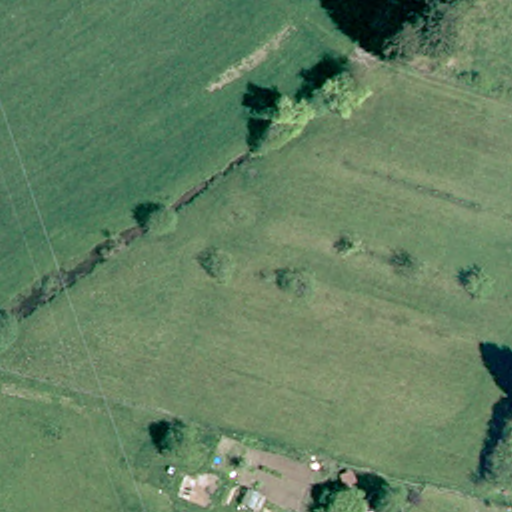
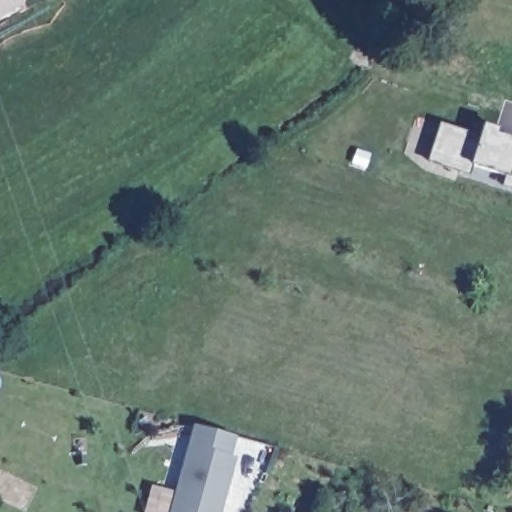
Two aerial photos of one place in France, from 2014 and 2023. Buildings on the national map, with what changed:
new [(478,135),(482,124),(499,128),(497,134),(512,138),(512,187),(501,184),(503,176),(470,165),(468,174),(426,161),(438,122),(478,135)]
new [(230,456),(237,457),(221,512),(169,512),(193,424),(236,436),(230,456)]

